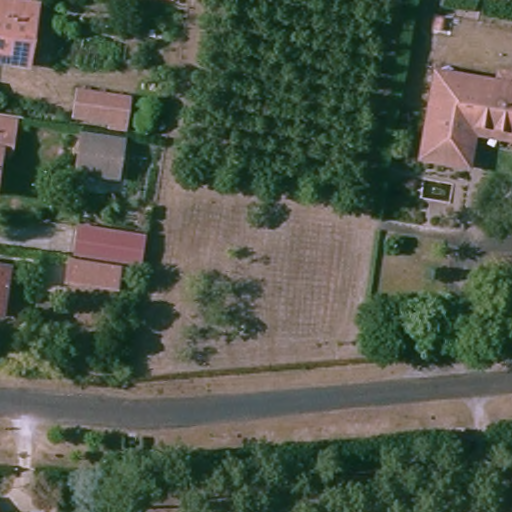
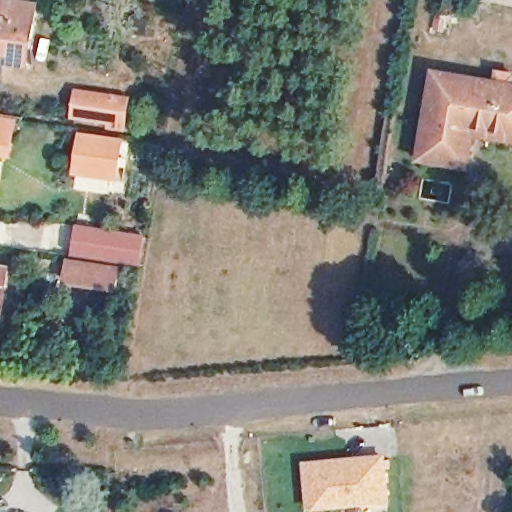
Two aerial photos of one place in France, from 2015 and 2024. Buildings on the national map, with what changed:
unchanged [(34,8),(26,63),(0,60),(0,4),(34,8)]
unchanged [(470,167),(421,157),(435,75),(493,84),(493,77),(512,79),(512,140),(475,135),(470,167)]
unchanged [(74,119),(80,90),(125,98),(121,126),(74,119)]
unchanged [(5,116),(0,147),(0,115),(5,116)]
unchanged [(75,172),(79,140),(119,147),(115,177),(75,172)]
unchanged [(74,254),(78,225),(141,235),(136,264),(74,254)]
unchanged [(71,289),(72,265),(114,271),(109,295),(71,289)]
unchanged [(4,269),(0,301),(0,269),(4,269)]
new [(393,504),(308,512),(303,461),(387,455),(393,504)]

